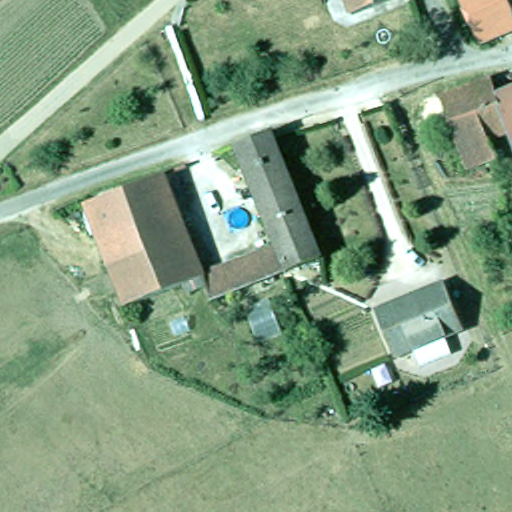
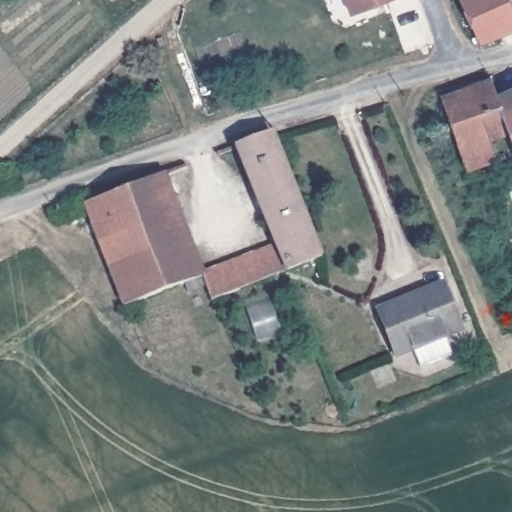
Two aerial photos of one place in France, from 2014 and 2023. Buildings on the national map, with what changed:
unchanged [(343,12),(339,0),(371,0),(343,12)]
unchanged [(457,0),(503,0),(512,19),(512,28),(477,41),(457,0)]
unchanged [(503,0),(512,0),(512,19),(503,0)]
unchanged [(490,76),(502,114),(499,115),(481,121),(493,155),(464,165),(433,77),(483,60),(490,76)]
unchanged [(490,76),(512,67),(512,144),(502,114),(490,76)]
unchanged [(202,270),(275,240),(232,137),(266,124),(268,130),(319,252),(209,296),(207,293),(192,298),(183,277),(123,301),(81,195),(159,165),(202,270)]
unchanged [(437,282),(455,325),(392,352),(375,308),(437,282)]

